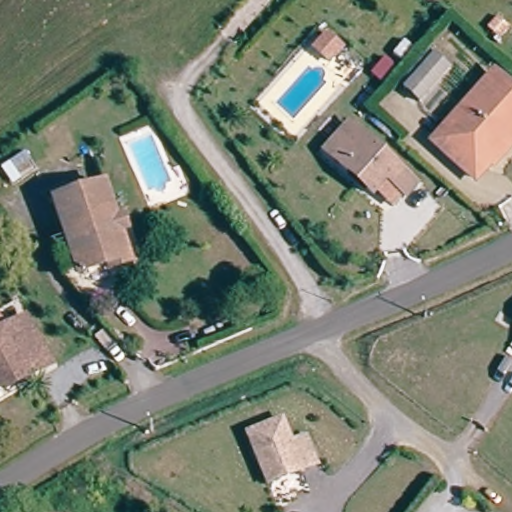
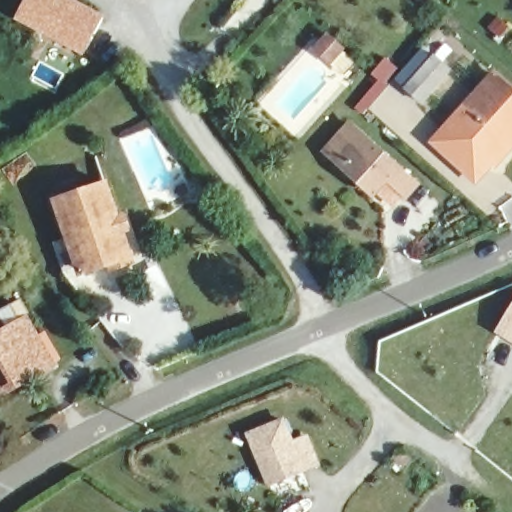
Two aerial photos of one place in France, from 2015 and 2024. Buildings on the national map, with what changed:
new [(105,15),(84,57),(15,22),(26,0),(76,0),(105,15)]
demolished [(343,61),(335,56),(330,53),(341,39),(355,48),(356,48),(343,61)]
new [(343,51),(331,64),(322,58),(318,55),(328,41),(342,50),(343,51)]
unchanged [(453,67),(426,102),(412,91),(440,58),(453,67)]
unchanged [(493,78),(512,94),(512,141),(482,175),(451,148),(441,140),(455,123),(493,78)]
unchanged [(409,177),(386,203),(323,147),(347,122),(409,177)]
unchanged [(50,237),(65,232),(54,200),(101,183),(111,215),(121,211),(129,229),(119,233),(127,256),(110,270),(103,263),(76,267),(74,262),(62,266),(50,237)]
new [(512,306),(512,343),(496,333),(512,306)]
unchanged [(52,360),(12,387),(3,376),(0,379),(0,327),(26,312),(52,360)]
unchanged [(294,445),(312,438),(323,465),(273,484),(253,438),(286,424),(294,445)]

